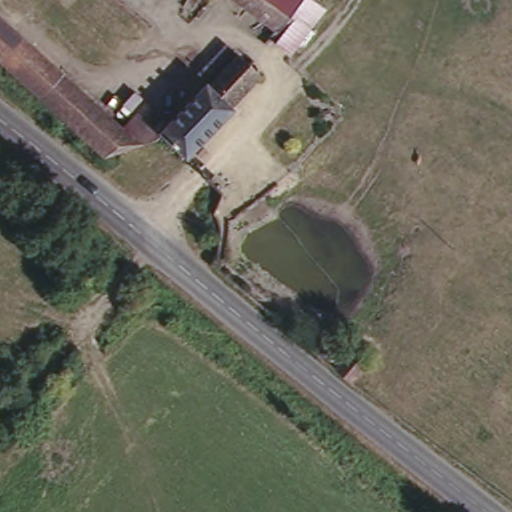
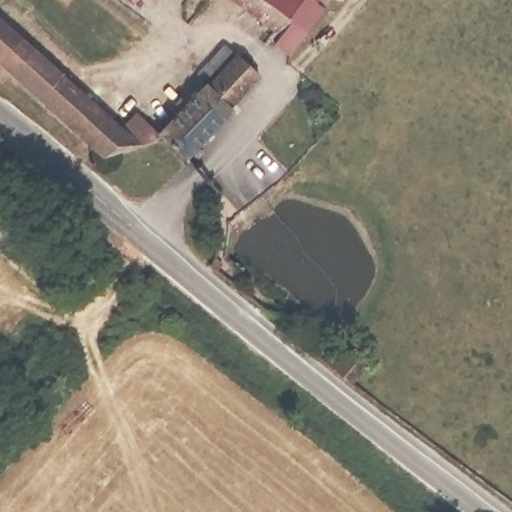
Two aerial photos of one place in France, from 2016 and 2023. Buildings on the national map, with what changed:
unchanged [(157,0),(161,0),(159,2),(157,0)]
unchanged [(301,2),(292,15),(309,30),(290,56),(271,42),(277,32),(235,0),(319,0),(313,9),(301,2)]
unchanged [(127,120),(137,105),(143,111),(139,119),(156,135),(159,140),(103,158),(0,63),(0,15),(125,132),(132,126),(127,120)]
unchanged [(203,86),(197,79),(224,52),(256,83),(229,111),(232,115),(185,164),(159,140),(156,135),(203,86)]
unchanged [(203,254),(215,264),(207,272),(196,261),(203,254)]
unchanged [(342,345),(345,341),(351,345),(360,333),(371,342),(372,346),(364,355),(367,358),(349,378),(327,362),(342,345)]

